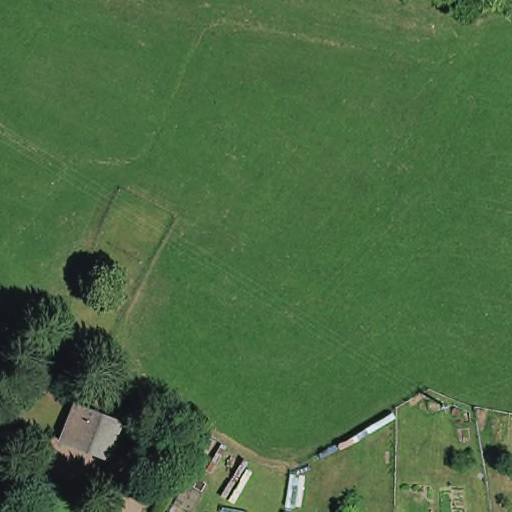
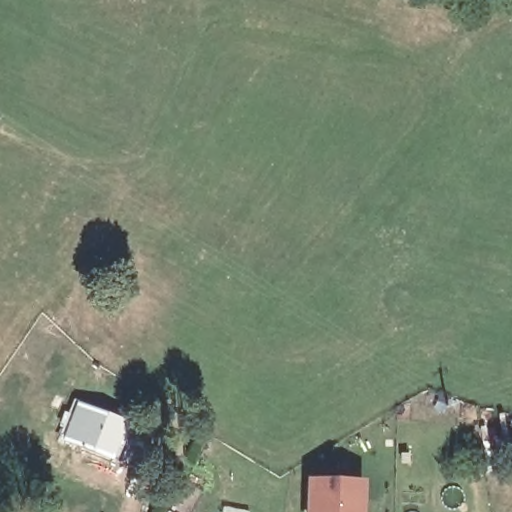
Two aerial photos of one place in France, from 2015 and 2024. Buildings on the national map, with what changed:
unchanged [(125,424),(114,453),(80,440),(77,446),(67,443),(81,408),(125,424)]
new [(361,512),(303,512),(302,479),(362,480),(361,512)]

